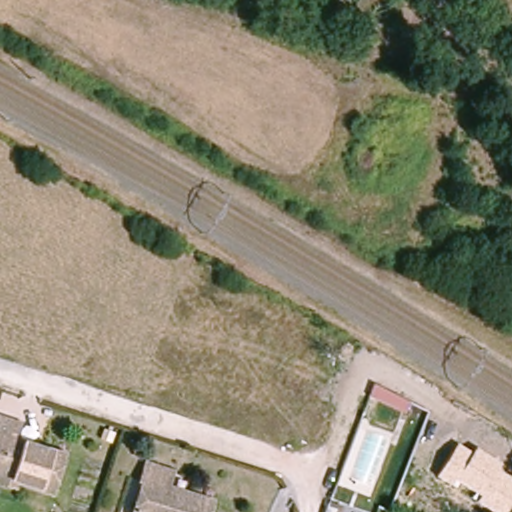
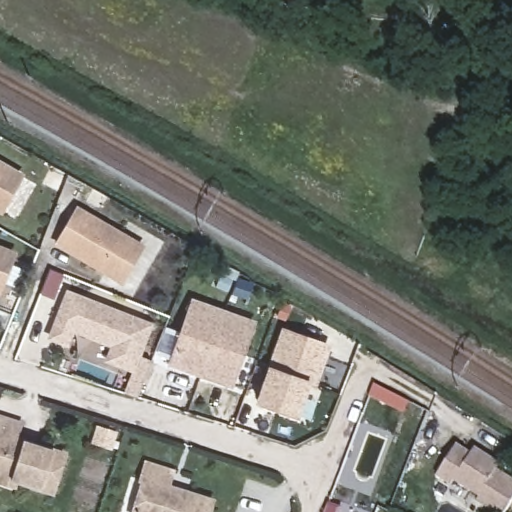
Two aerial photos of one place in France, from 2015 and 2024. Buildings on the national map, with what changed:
demolished [(388,178),(352,164),(365,120),(402,135),(388,178)]
new [(25,174),(1,214),(0,213),(0,160),(25,174)]
new [(55,243),(77,205),(144,244),(121,284),(55,243)]
new [(0,294),(0,244),(19,251),(0,294)]
new [(104,361),(109,347),(73,332),(67,346),(47,338),(66,288),(154,322),(134,372),(104,361)]
new [(234,388),(168,364),(191,297),(257,320),(234,388)]
new [(298,418),(255,402),(268,366),(281,326),(330,344),(317,383),(312,381),(298,418)]
demolished [(386,370),(448,402),(451,400),(482,423),(465,445),(432,428),(435,424),(375,392),(386,370)]
unchanged [(15,419),(11,434),(60,450),(47,487),(0,472),(0,415),(15,419)]
unchanged [(512,479),(512,502),(506,512),(492,512),(476,502),(480,496),(453,479),(450,486),(435,477),(458,443),(473,453),(476,447),(500,462),(496,469),(512,479)]
unchanged [(208,497),(203,512),(128,512),(139,476),(136,475),(142,459),(167,467),(162,482),(208,497)]

